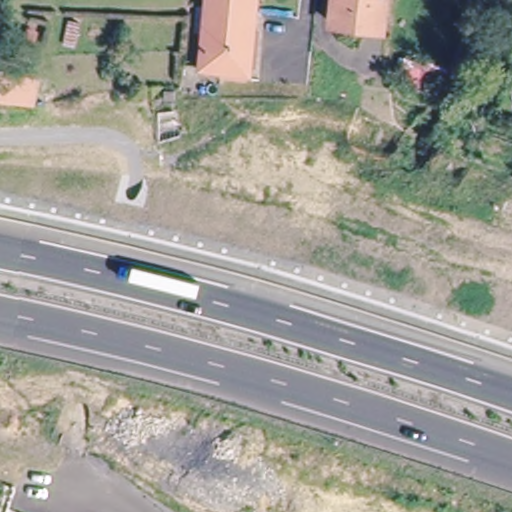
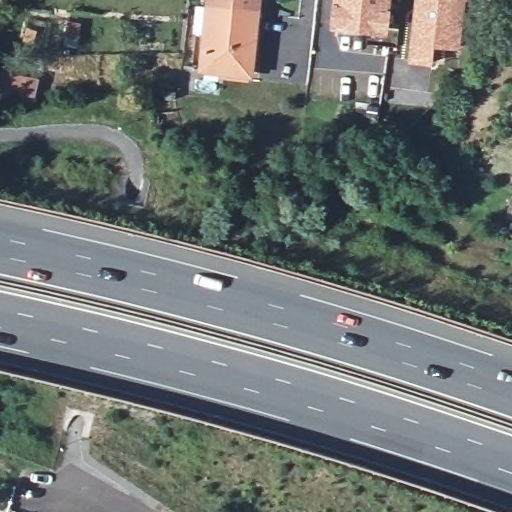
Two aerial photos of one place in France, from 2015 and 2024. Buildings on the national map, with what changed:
unchanged [(248,76),(197,72),(205,3),(194,2),(194,0),(254,0),(248,76)]
unchanged [(336,0),(386,0),(380,36),(331,28),(336,0)]
new [(460,50),(432,47),(431,64),(410,62),(416,0),(468,0),(460,50)]
unchanged [(0,103),(0,65),(35,77),(29,108),(0,103)]

